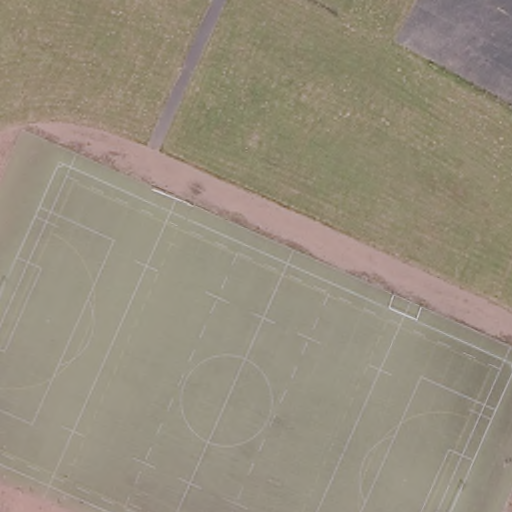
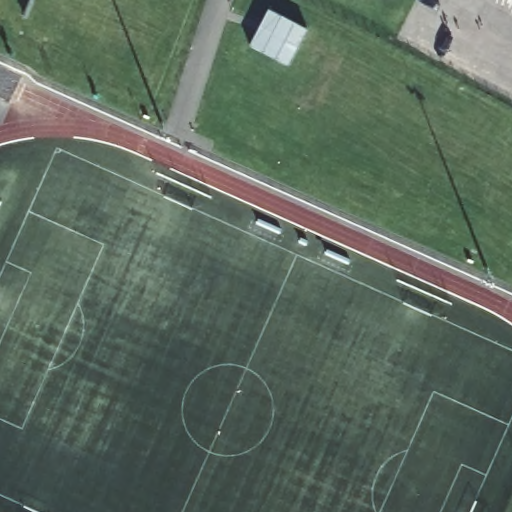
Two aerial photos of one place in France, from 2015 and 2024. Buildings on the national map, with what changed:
new [(308,28),(289,64),(250,44),(269,8),(308,28)]

